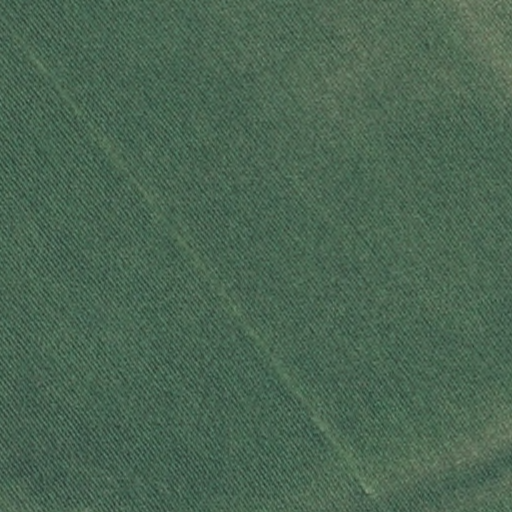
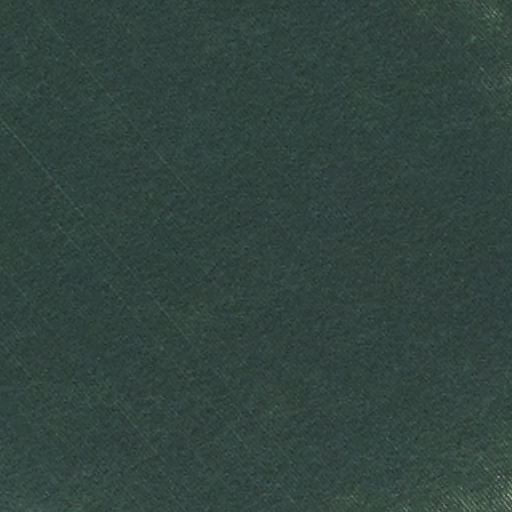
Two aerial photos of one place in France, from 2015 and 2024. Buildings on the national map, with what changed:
[]

